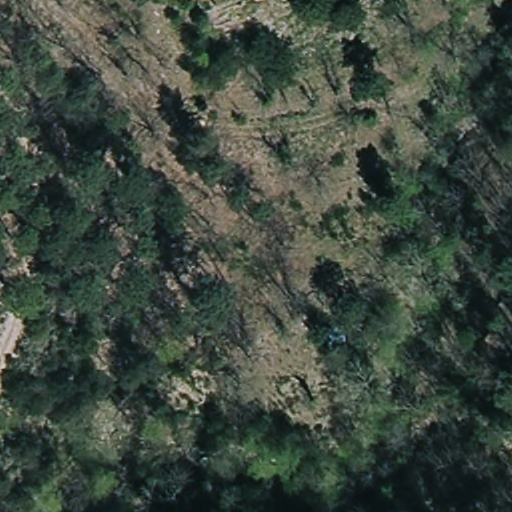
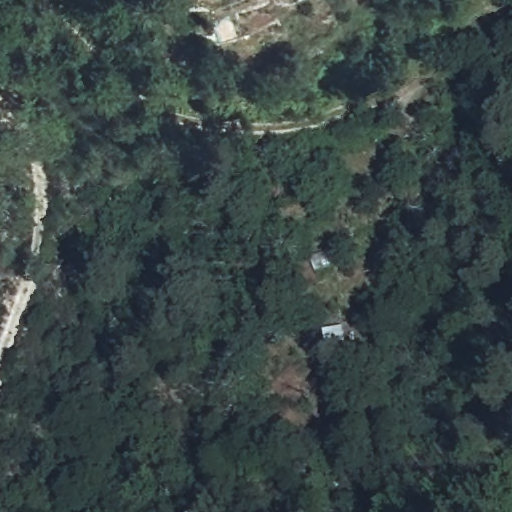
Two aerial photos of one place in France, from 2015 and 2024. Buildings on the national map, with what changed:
unchanged [(284,18),(267,0),(301,0),(302,1),(284,18)]

